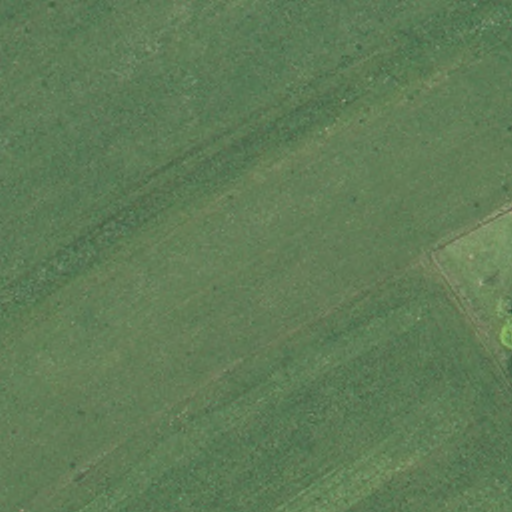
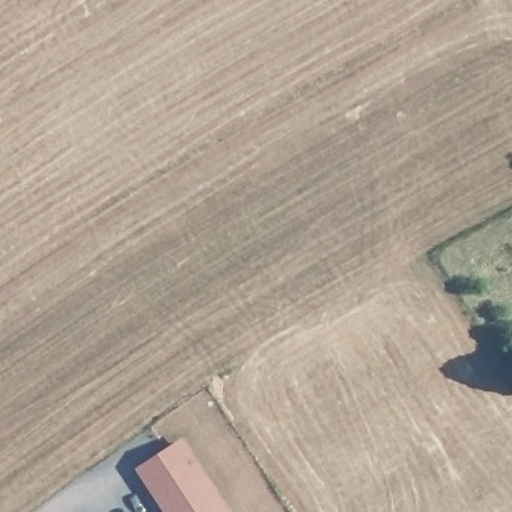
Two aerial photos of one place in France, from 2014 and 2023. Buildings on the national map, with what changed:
new [(233,512),(165,512),(137,468),(183,437),(233,512)]

